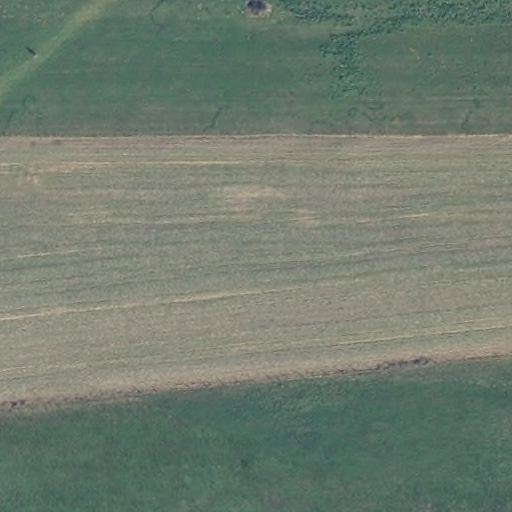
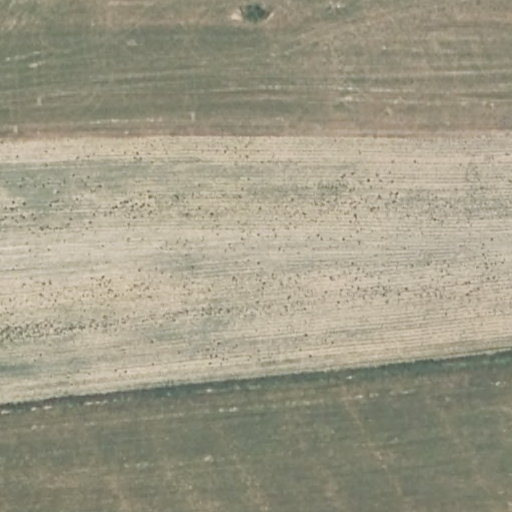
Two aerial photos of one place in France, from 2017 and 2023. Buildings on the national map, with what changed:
[]

